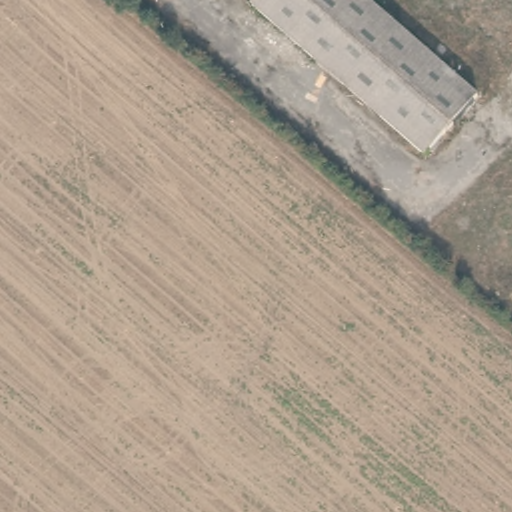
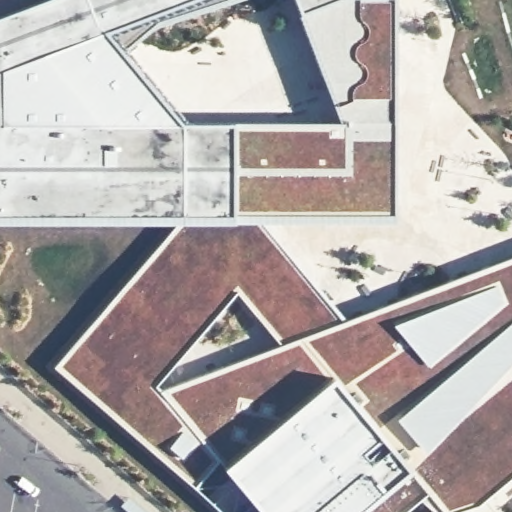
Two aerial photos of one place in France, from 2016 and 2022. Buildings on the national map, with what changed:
new [(393,222),(254,222),(340,321),(512,256),(512,477),(475,508),(460,512),(430,512),(417,502),(405,512),(216,512),(52,367),(181,222),(0,223),(0,0),(191,0),(105,32),(179,121),(231,121),(335,120),(295,13),(290,0),(392,0),(393,222)]
demolished [(252,6),(257,0),(372,0),(480,97),(425,156),(252,6)]

